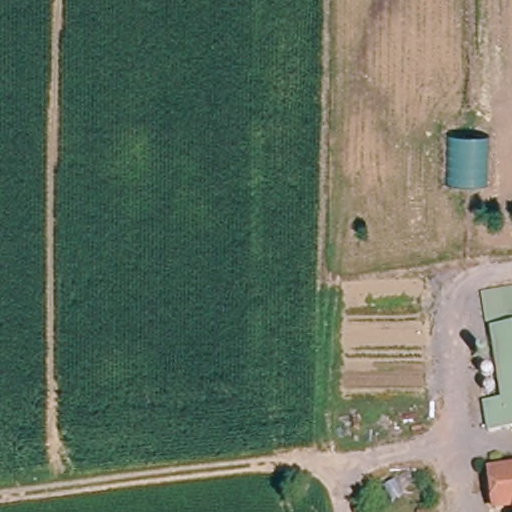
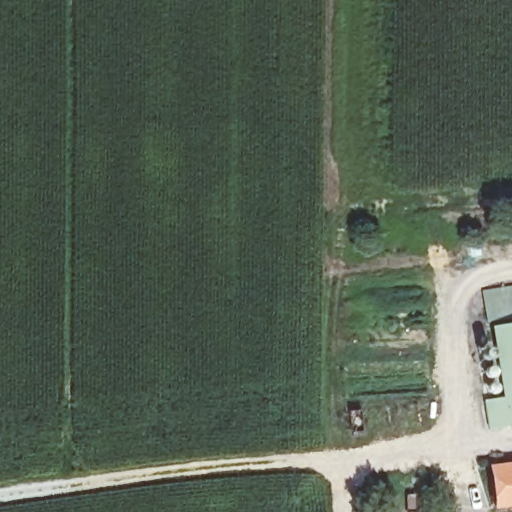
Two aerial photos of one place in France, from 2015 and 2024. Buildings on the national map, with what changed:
demolished [(451,138),(489,138),(487,188),(449,185),(451,138)]
unchanged [(512,288),(512,316),(485,320),(481,292),(512,288)]
unchanged [(512,325),(512,426),(486,430),(483,400),(502,397),(493,327),(512,325)]
unchanged [(497,512),(488,512),(482,467),(512,462),(512,512),(511,509),(497,512)]

